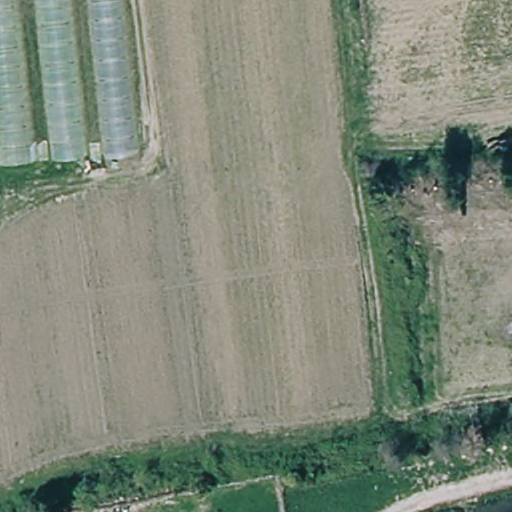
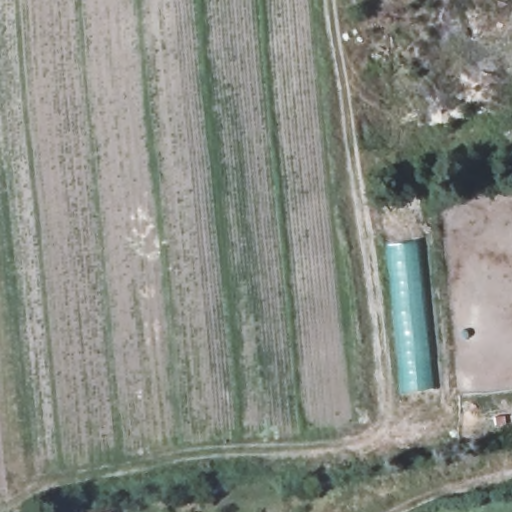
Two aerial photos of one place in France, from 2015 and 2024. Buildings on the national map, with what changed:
demolished [(34,162),(0,165),(0,0),(19,0),(34,162)]
demolished [(85,155),(50,159),(34,0),(72,0),(85,155)]
demolished [(138,152),(103,156),(87,0),(123,0),(138,152)]
new [(400,393),(386,245),(421,242),(435,390),(400,393)]

